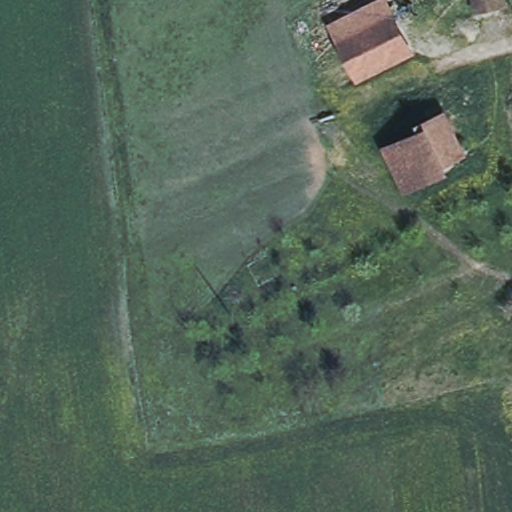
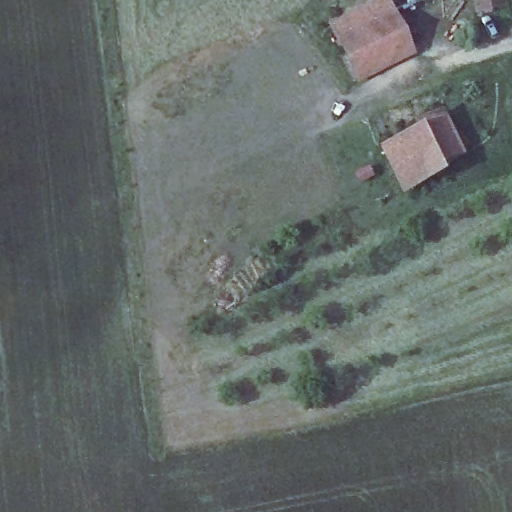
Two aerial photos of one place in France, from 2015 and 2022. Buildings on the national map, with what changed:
unchanged [(381,0),(387,0),(416,54),(359,83),(332,24),(381,0)]
unchanged [(488,7),(487,0),(508,0),(509,4),(488,7)]
unchanged [(424,134),(422,128),(443,119),(459,152),(439,161),(443,169),(408,186),(391,150),(424,134)]

